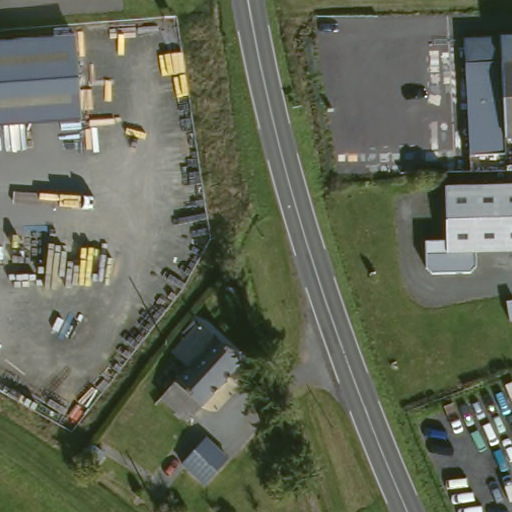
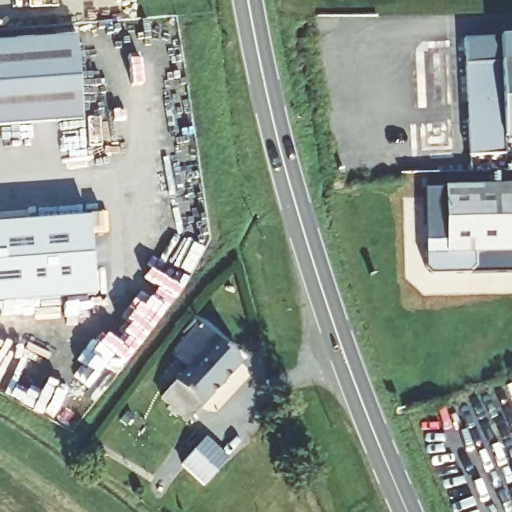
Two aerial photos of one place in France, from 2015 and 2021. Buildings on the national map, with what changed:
demolished [(388,20),(395,19),(395,40),(395,46),(382,46),(382,40),(381,20),(388,20)]
unchanged [(79,35),(83,118),(0,124),(0,41),(79,35)]
unchanged [(472,157),(467,64),(492,63),(512,63),(512,140),(497,140),(498,155),(472,157)]
unchanged [(475,268),(468,274),(432,275),(426,269),(425,253),(430,253),(430,244),(446,244),(443,189),(512,187),(512,252),(474,253),(475,268)]
new [(90,217),(95,296),(0,303),(0,224),(90,217)]
unchanged [(161,403),(188,374),(172,359),(187,343),(184,339),(196,326),(217,344),(242,368),(187,427),(161,403)]
unchanged [(227,468),(203,493),(181,473),(205,447),(227,468)]

